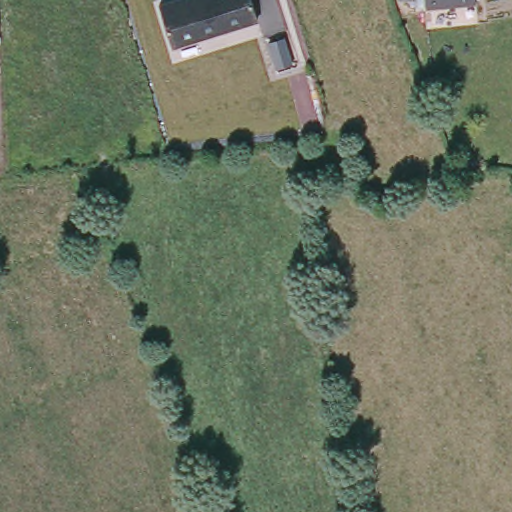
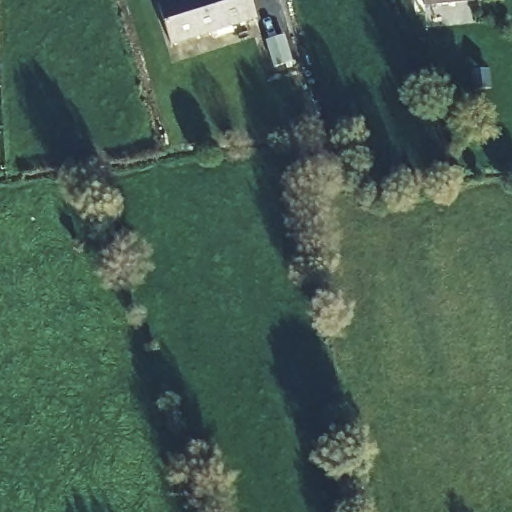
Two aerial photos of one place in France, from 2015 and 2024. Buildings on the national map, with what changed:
unchanged [(251,0),(256,15),(169,41),(157,0),(159,0),(251,0)]
unchanged [(425,7),(425,0),(474,0),(475,4),(425,7)]

